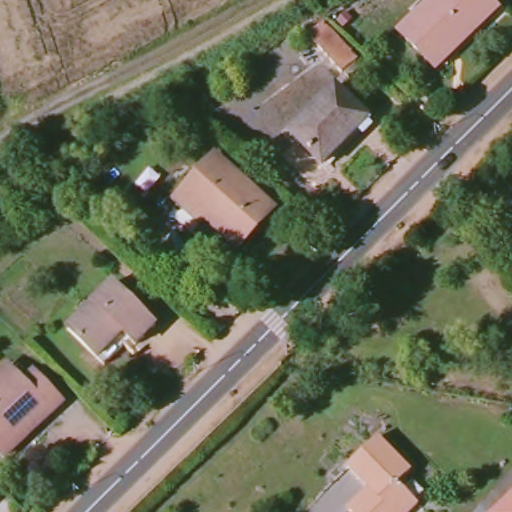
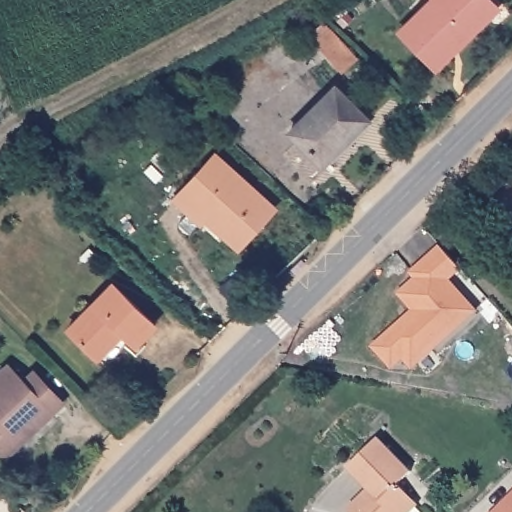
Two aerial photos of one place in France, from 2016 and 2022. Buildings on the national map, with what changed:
unchanged [(433,0),(492,0),(497,5),(449,53),(452,56),(438,71),(400,33),(433,0)]
unchanged [(360,60),(343,76),(315,43),(330,29),(360,60)]
unchanged [(336,86),(370,120),(325,166),(291,133),(336,86)]
unchanged [(208,120),(198,131),(175,110),(186,101),(208,120)]
unchanged [(215,153),(277,210),(241,251),(208,221),(202,228),(171,200),(215,153)]
unchanged [(30,204),(0,229),(0,206),(17,190),(30,204)]
new [(412,309),(398,293),(415,278),(410,271),(440,244),(460,268),(452,278),(480,311),(412,369),(403,358),(392,368),(372,345),(412,309)]
unchanged [(113,282),(157,326),(137,347),(124,334),(99,359),(67,329),(113,282)]
unchanged [(22,380),(33,370),(65,404),(6,458),(0,452),(0,374),(9,366),(22,380)]
unchanged [(368,490),(347,469),(378,439),(412,473),(399,485),(418,505),(411,512),(347,512),(346,510),(355,502),(368,490)]
unchanged [(491,512),(512,492),(512,512),(491,512)]

